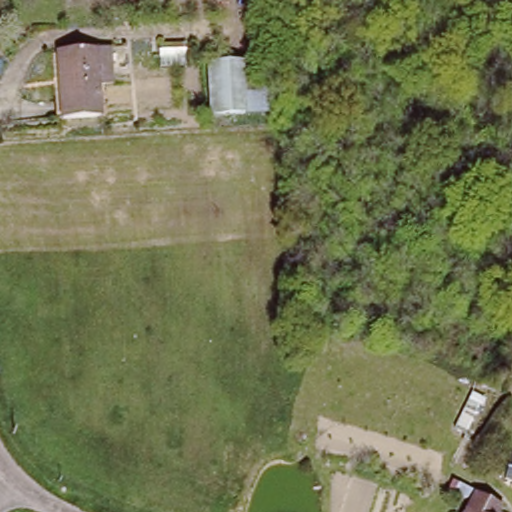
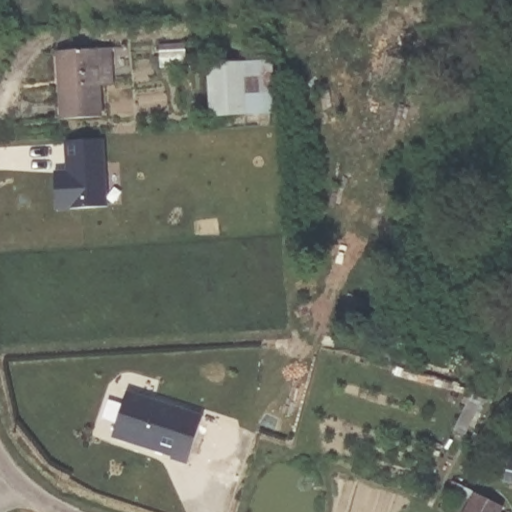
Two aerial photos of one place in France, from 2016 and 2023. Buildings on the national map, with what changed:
unchanged [(115,51),(117,77),(99,77),(102,119),(64,121),(60,54),(98,52),(115,51)]
new [(272,59),(277,114),(210,118),(205,62),(272,59)]
new [(105,134),(108,206),(55,209),(53,171),(65,170),(63,140),(105,134)]
new [(187,463),(171,458),(172,456),(112,437),(127,390),(204,413),(187,463)]
unchanged [(512,462),(512,480),(505,479),(510,462),(512,462)]
unchanged [(455,490),(460,481),(509,511),(508,512),(471,512),(475,505),(455,490)]

